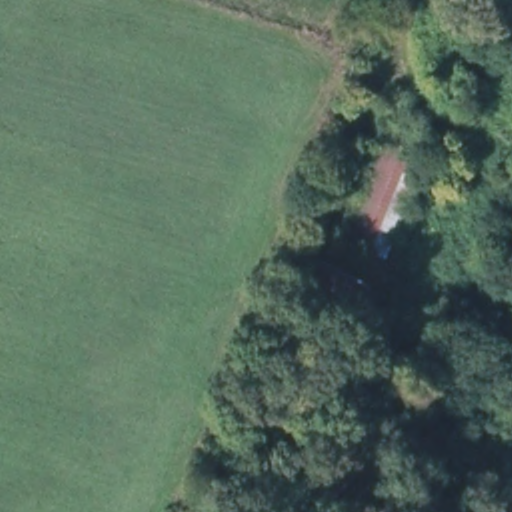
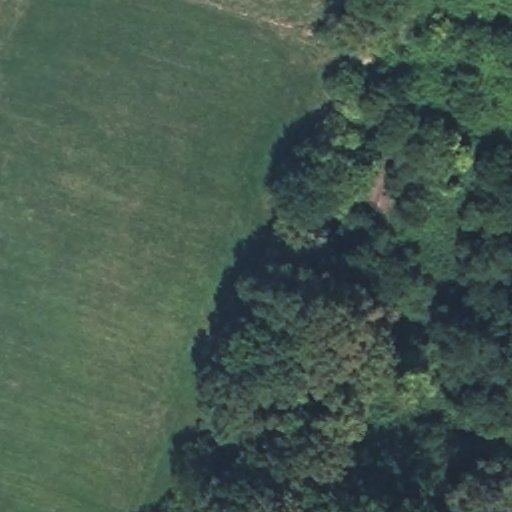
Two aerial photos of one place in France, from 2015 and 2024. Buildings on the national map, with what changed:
unchanged [(413,95),(407,123),(431,134),(388,257),(331,238),(387,88),(413,95)]

